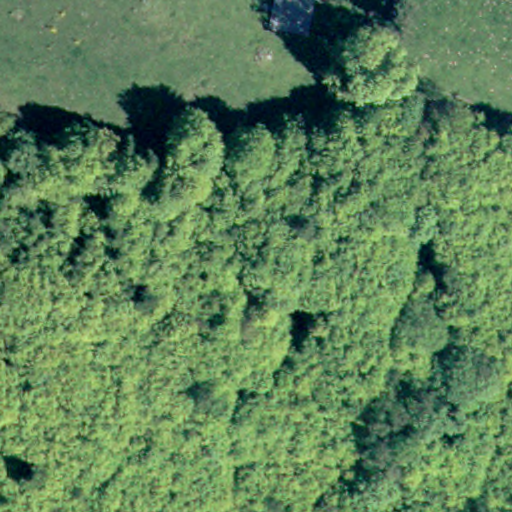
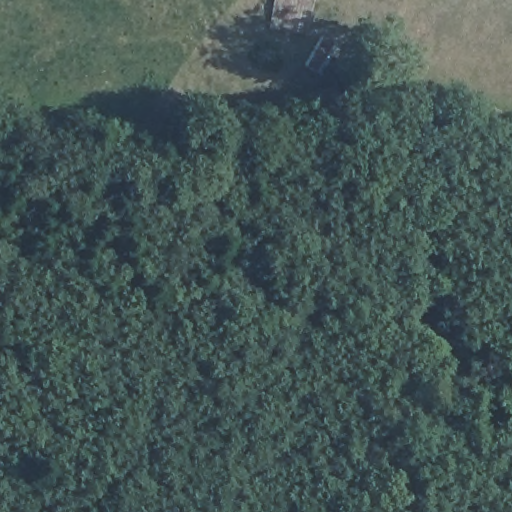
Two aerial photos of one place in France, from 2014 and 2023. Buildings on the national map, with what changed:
unchanged [(273,0),(329,0),(324,27),(269,17),(273,0)]

